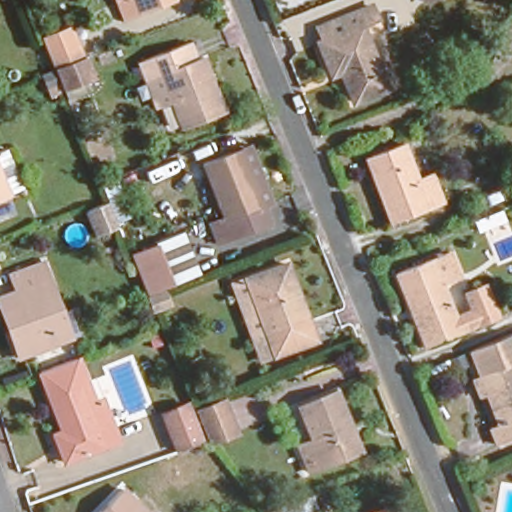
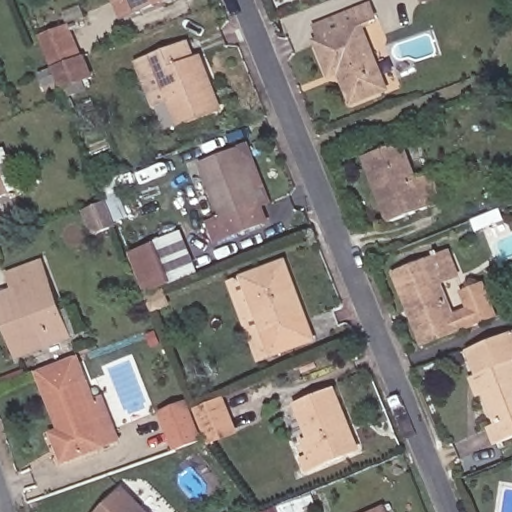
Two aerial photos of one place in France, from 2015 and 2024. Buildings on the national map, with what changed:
unchanged [(120,16),(113,0),(160,0),(120,16)]
unchanged [(349,93),(338,65),(327,69),(315,35),(322,33),(316,19),(364,0),(369,0),(375,16),(360,22),(381,82),(349,93)]
unchanged [(46,65),(36,37),(70,25),(81,51),(46,65)]
unchanged [(202,88),(211,109),(179,123),(168,97),(151,103),(142,77),(151,73),(142,54),(185,38),(193,55),(196,54),(209,85),(202,88)]
unchanged [(46,65),(81,51),(86,50),(95,72),(55,87),(46,65)]
unchanged [(375,179),(366,154),(374,151),(406,140),(420,177),(434,173),(445,200),(389,220),(375,179)]
unchanged [(213,240),(204,221),(221,212),(202,163),(240,148),(251,144),(271,197),(259,201),(265,218),(213,240)]
unchanged [(93,234),(82,210),(106,198),(101,182),(124,174),(134,197),(124,200),(129,214),(93,234)]
unchanged [(0,177),(6,190),(0,193),(0,177)]
unchanged [(145,291),(131,251),(181,229),(197,273),(145,291)]
unchanged [(455,285),(479,276),(491,311),(418,336),(391,264),(430,250),(449,243),(460,272),(439,279),(448,306),(462,300),(455,285)]
unchanged [(278,354),(251,270),(289,258),(319,341),(278,354)]
unchanged [(0,303),(0,294),(17,287),(11,272),(46,260),(71,335),(19,356),(8,326),(0,303)]
unchanged [(264,359),(236,276),(251,270),(278,354),(264,359)]
unchanged [(496,440),(489,419),(504,413),(493,383),(487,386),(473,343),(512,330),(512,435),(496,440)]
unchanged [(60,457),(50,428),(57,425),(40,370),(81,355),(89,376),(80,378),(86,399),(104,392),(118,437),(60,457)]
unchanged [(241,434),(208,447),(203,438),(172,449),(156,408),(186,396),(190,405),(225,389),(241,434)]
unchanged [(344,424),(353,448),(305,467),(294,439),(308,434),(298,405),(340,390),(352,421),(344,424)]
unchanged [(150,512),(90,512),(130,483),(150,512)]
unchanged [(389,512),(363,512),(384,502),(389,512)]

